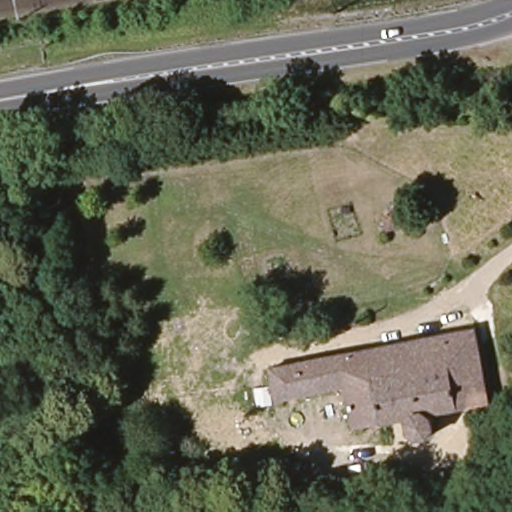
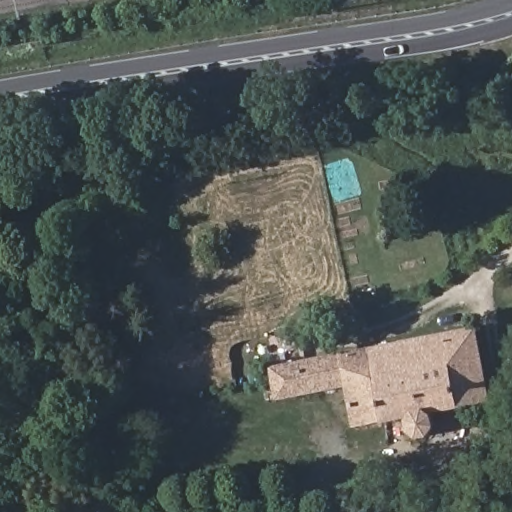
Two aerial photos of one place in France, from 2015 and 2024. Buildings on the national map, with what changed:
unchanged [(413,213),(415,231),(391,233),(389,215),(413,213)]
unchanged [(474,327),(488,397),(434,405),(430,416),(423,424),(417,424),(413,422),(407,410),(351,421),(344,385),(274,397),(268,365),(474,327)]

